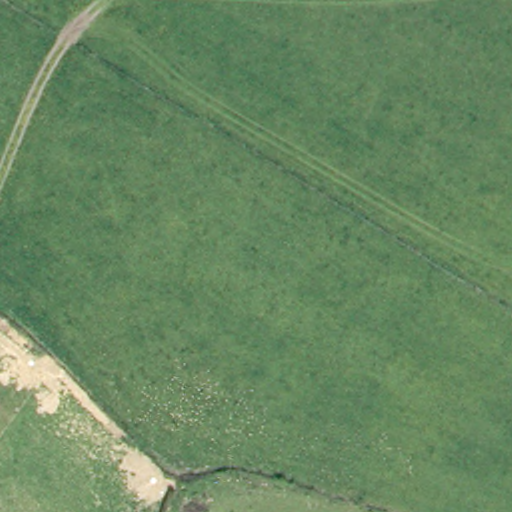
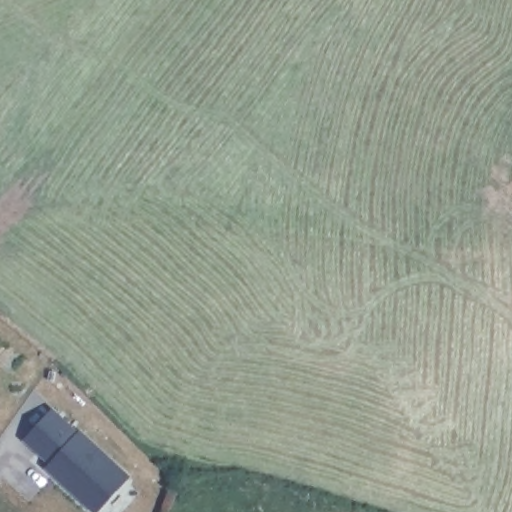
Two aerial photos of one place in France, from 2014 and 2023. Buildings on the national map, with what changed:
new [(130,476),(98,512),(94,512),(45,468),(49,465),(22,442),(52,408),(78,432),(80,430),(130,476)]

